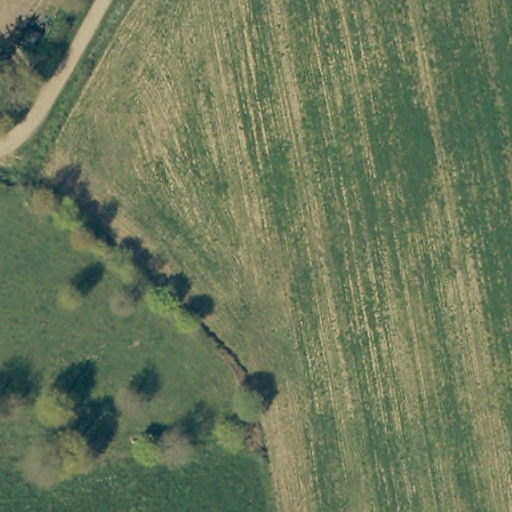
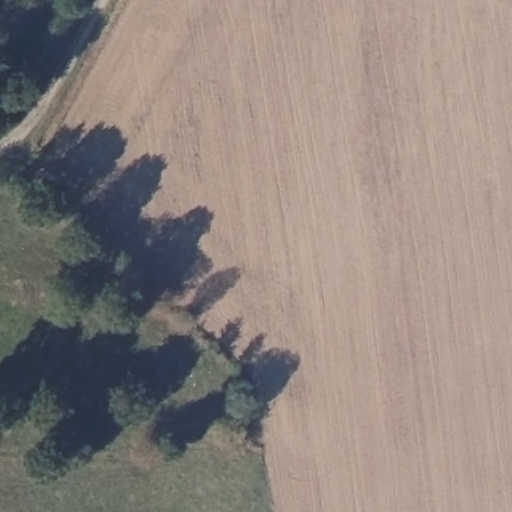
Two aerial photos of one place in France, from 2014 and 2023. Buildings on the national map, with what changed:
[]

